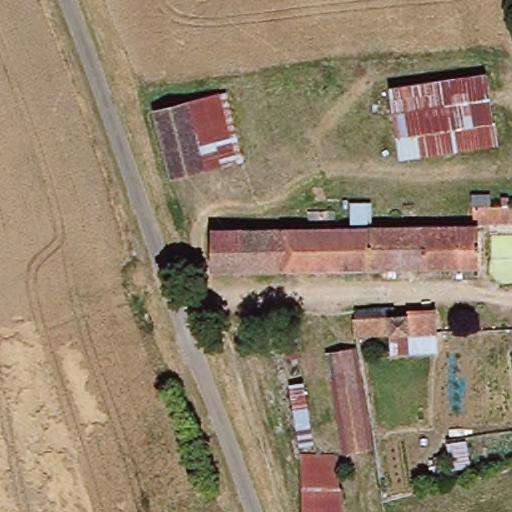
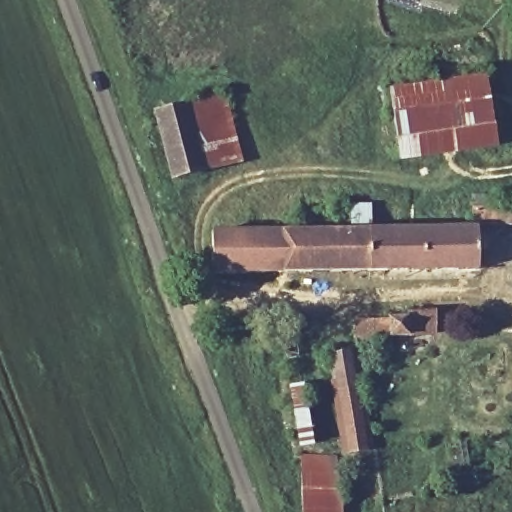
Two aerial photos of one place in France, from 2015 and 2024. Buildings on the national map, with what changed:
unchanged [(393,90),(488,78),(499,150),(402,162),(393,90)]
unchanged [(154,113),(224,96),(240,160),(170,177),(154,113)]
unchanged [(487,225),(486,216),(479,216),(479,209),(512,208),(512,224),(487,225)]
unchanged [(213,270),(214,234),(479,229),(480,269),(260,270),(213,270)]
unchanged [(414,313),(440,313),(440,356),(405,355),(405,339),(393,339),(362,339),(363,321),(392,320),(414,319),(414,313)]
unchanged [(329,356),(352,352),(370,448),(346,453),(329,356)]
unchanged [(453,472),(450,446),(464,444),(469,469),(453,472)]
unchanged [(302,512),(300,458),(337,456),(339,512),(302,512)]

